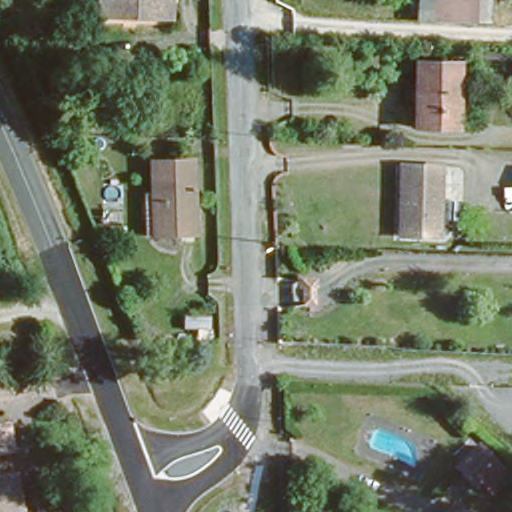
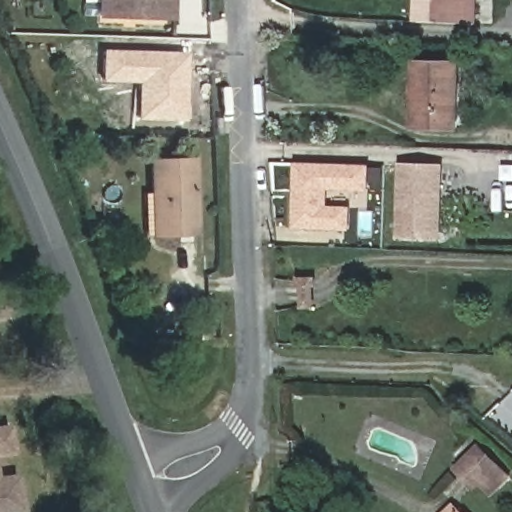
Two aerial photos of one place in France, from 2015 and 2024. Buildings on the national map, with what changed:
unchanged [(158,15),(101,12),(101,0),(172,0),(171,16),(158,15)]
unchanged [(471,21),(420,18),(421,0),(472,0),(471,21)]
new [(139,82),(101,82),(103,49),(188,52),(187,121),(138,120),(139,82)]
unchanged [(457,62),(454,124),(414,122),(415,96),(411,96),(412,62),(457,62)]
unchanged [(143,192),(151,192),(150,161),(194,159),(197,235),(159,237),(144,237),(143,192)]
new [(296,162),(371,165),(371,191),(330,190),(330,205),(352,206),(351,230),(294,227),(296,162)]
unchanged [(439,167),(437,237),(400,235),(402,165),(439,167)]
unchanged [(0,451),(0,425),(11,424),(13,450),(0,451)]
unchanged [(498,457),(477,481),(459,466),(480,442),(498,457)]
unchanged [(20,512),(0,512),(0,475),(16,472),(20,512)]

